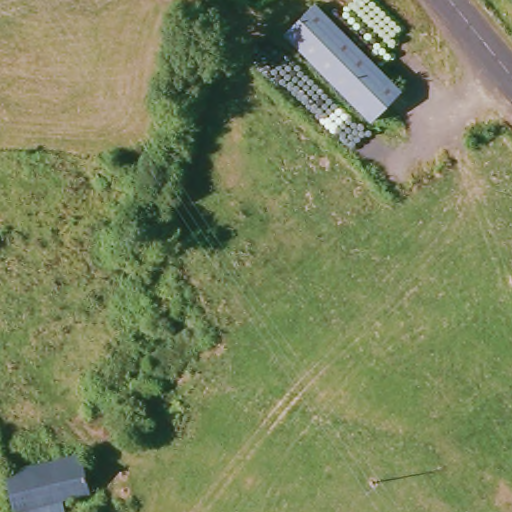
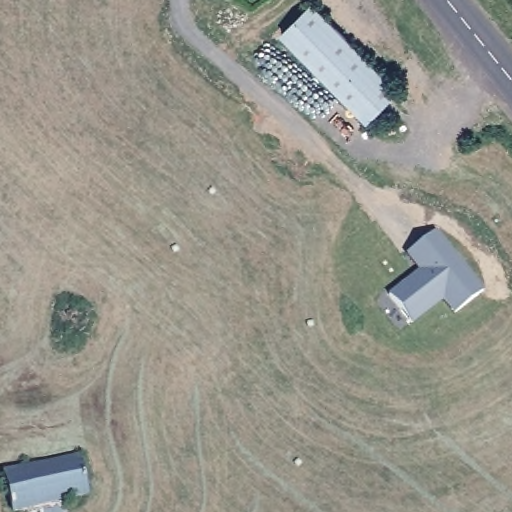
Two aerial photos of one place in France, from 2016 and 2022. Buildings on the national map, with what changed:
unchanged [(390,92),(357,120),(285,30),(317,3),(390,92)]
new [(419,270),(406,253),(435,229),(483,289),(454,315),(442,299),(412,324),(387,316),(388,294),(419,270)]
unchanged [(70,446),(82,498),(60,501),(62,511),(61,512),(13,512),(0,463),(0,459),(70,446)]

